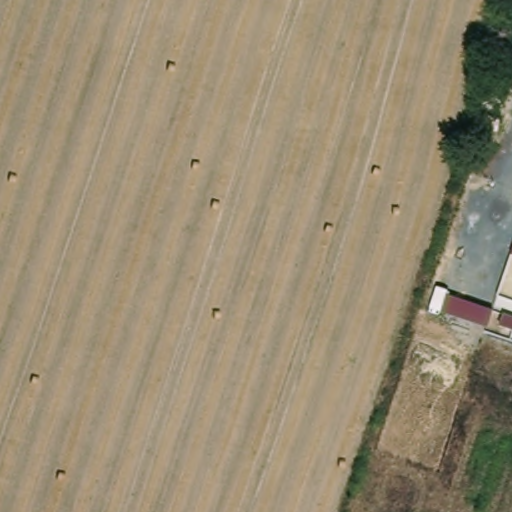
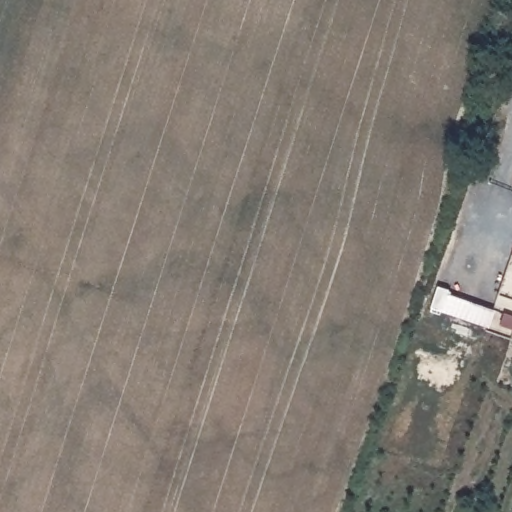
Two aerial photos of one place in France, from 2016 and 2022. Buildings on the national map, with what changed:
unchanged [(497,291),(512,246),(512,297),(497,291)]

